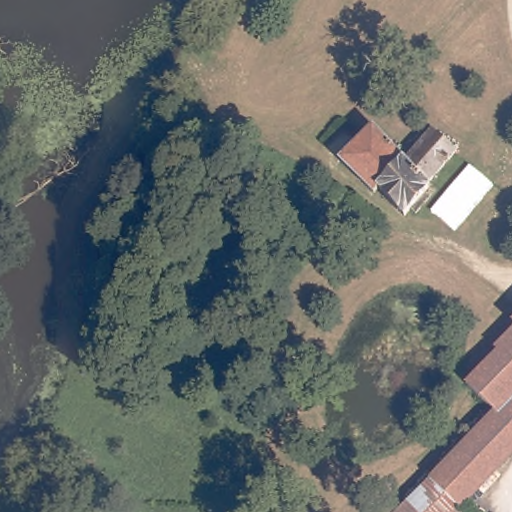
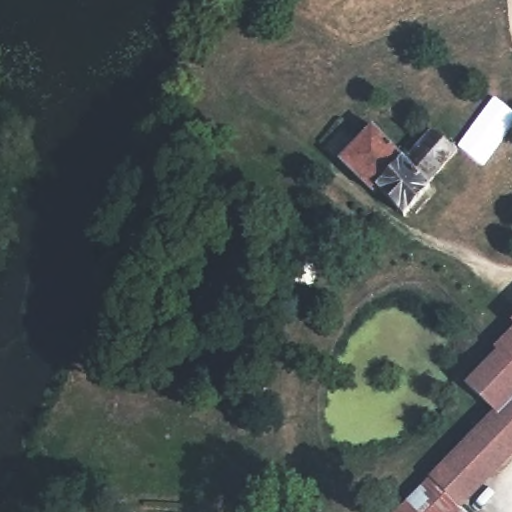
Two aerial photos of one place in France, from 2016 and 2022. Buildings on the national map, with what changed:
unchanged [(440,189),(419,210),(413,203),(406,210),(383,187),(380,191),(345,157),(367,133),(380,122),(407,154),(438,127),(461,153),(431,179),(440,189)]
unchanged [(499,417),(495,413),(469,386),(498,355),(494,351),(512,330),(512,403),(499,417)]
unchanged [(499,417),(512,403),(512,457),(465,505),(471,512),(391,512),(495,413),(499,417)]

